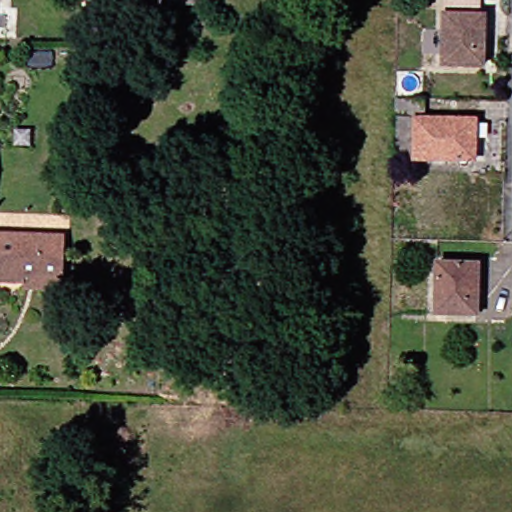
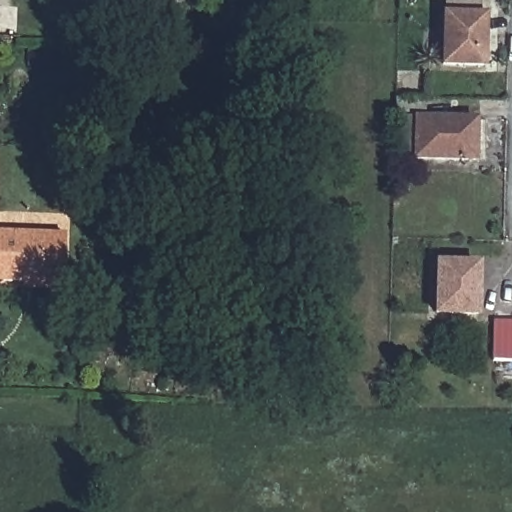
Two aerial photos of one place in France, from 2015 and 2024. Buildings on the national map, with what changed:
unchanged [(127,13),(90,12),(90,0),(145,0),(145,14),(127,13)]
unchanged [(198,0),(198,4),(166,3),(166,0),(198,0)]
unchanged [(483,65),(448,64),(450,14),(490,15),(489,52),(489,65),(483,65)]
unchanged [(401,118),(402,98),(424,99),(424,118),(475,119),(473,160),(413,159),(399,158),(401,118)]
unchanged [(27,289),(26,282),(0,281),(0,233),(70,235),(69,276),(66,276),(66,289),(27,289)]
unchanged [(484,267),(482,318),(435,315),(437,264),(484,267)]
new [(495,321),(512,322),(512,361),(494,361),(495,321)]

